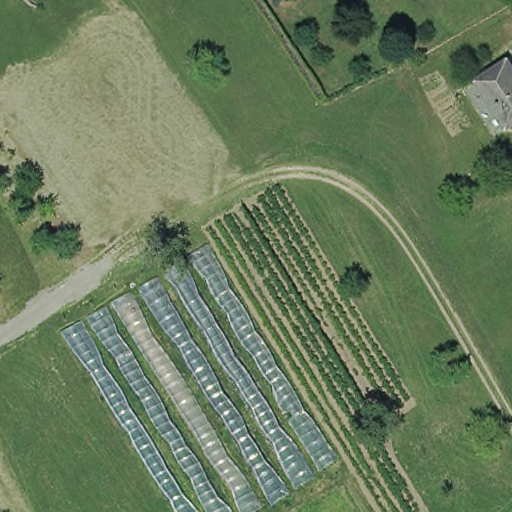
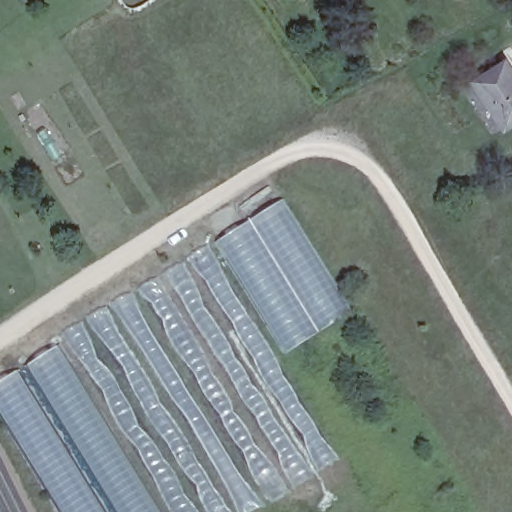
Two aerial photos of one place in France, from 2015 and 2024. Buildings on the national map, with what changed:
unchanged [(479,78),(509,59),(512,64),(512,120),(508,123),(479,78)]
new [(283,202),(349,313),(281,357),(209,245),(283,202)]
unchanged [(209,245),(281,357),(339,463),(255,512),(175,512),(65,333),(209,245)]
new [(159,512),(61,512),(0,411),(0,383),(58,346),(159,512)]

